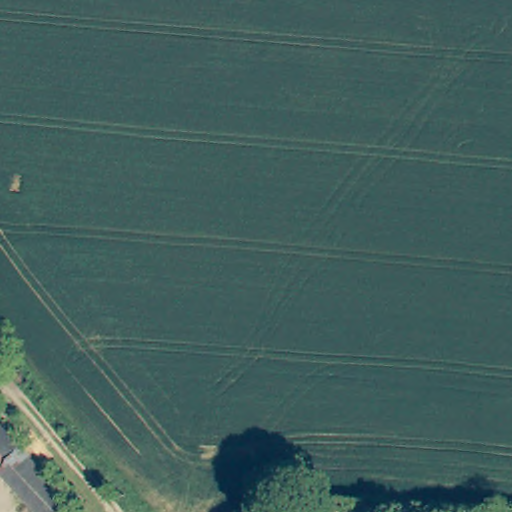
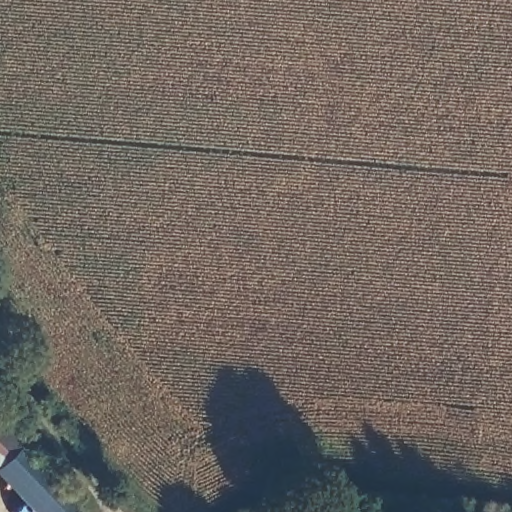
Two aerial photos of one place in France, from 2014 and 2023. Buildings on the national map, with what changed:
unchanged [(2,471),(0,469),(0,423),(72,501),(64,512),(39,512),(2,471)]

